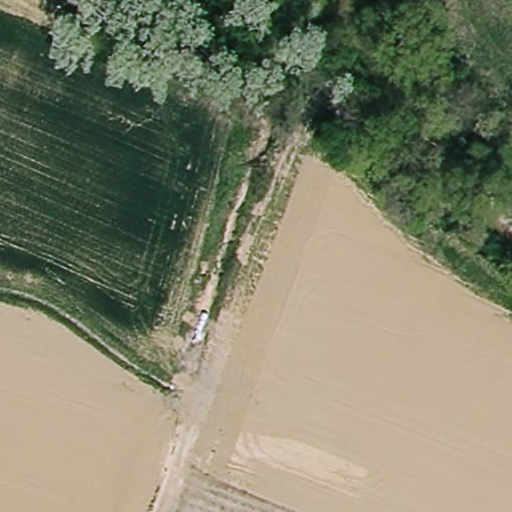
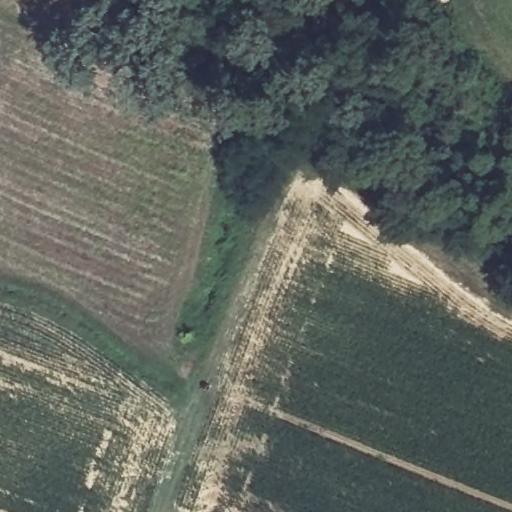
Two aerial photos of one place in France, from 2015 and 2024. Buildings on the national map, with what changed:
[]

